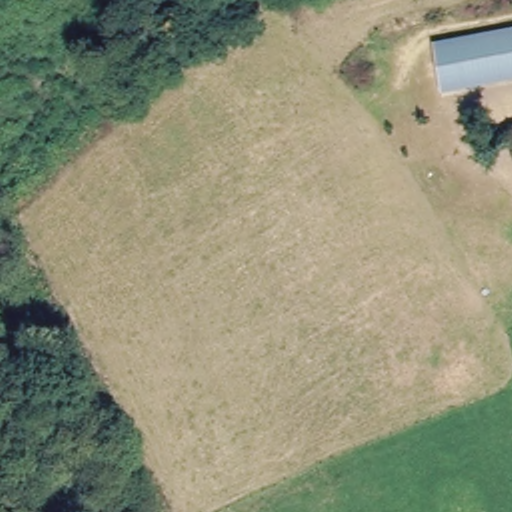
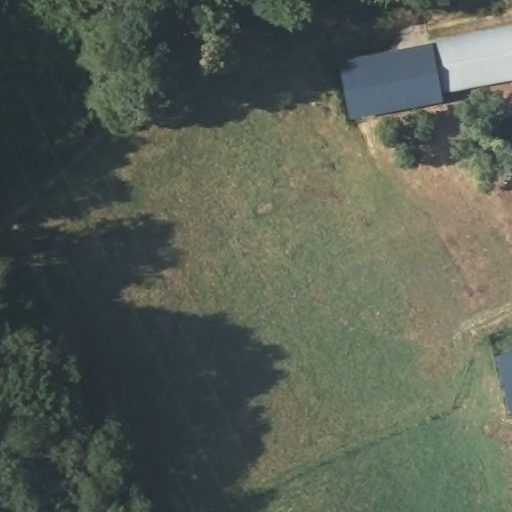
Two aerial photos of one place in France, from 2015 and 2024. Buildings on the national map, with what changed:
unchanged [(438,93),(430,44),(449,41),(512,30),(512,81),(438,93)]
new [(438,93),(442,93),(444,103),(349,120),(337,61),(430,44),(438,93)]
new [(509,414),(497,356),(512,353),(512,414),(509,414)]

